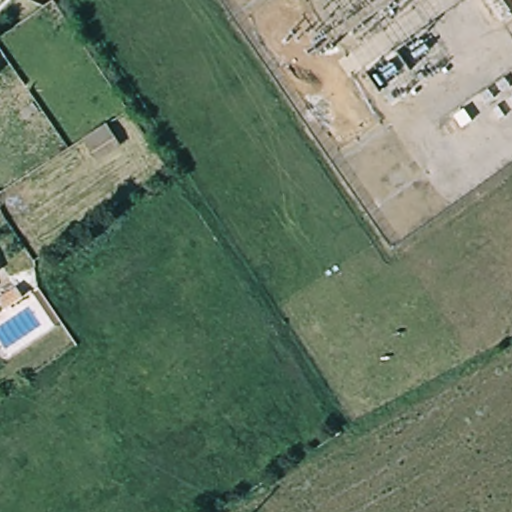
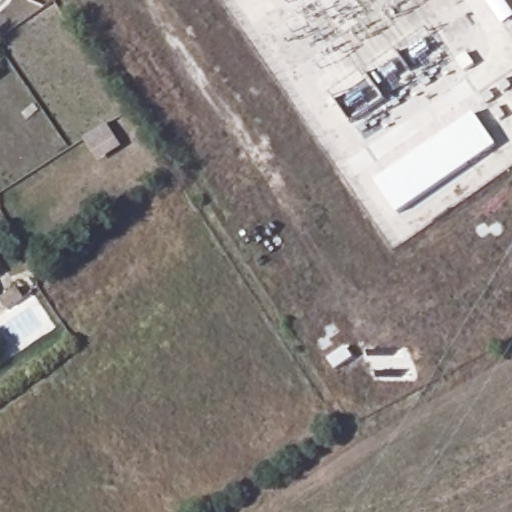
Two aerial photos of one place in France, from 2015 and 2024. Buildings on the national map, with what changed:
new [(377,184),(478,113),(500,145),(400,215),(377,184)]

